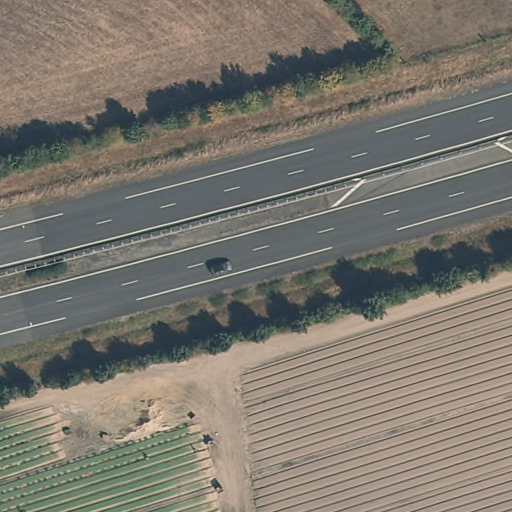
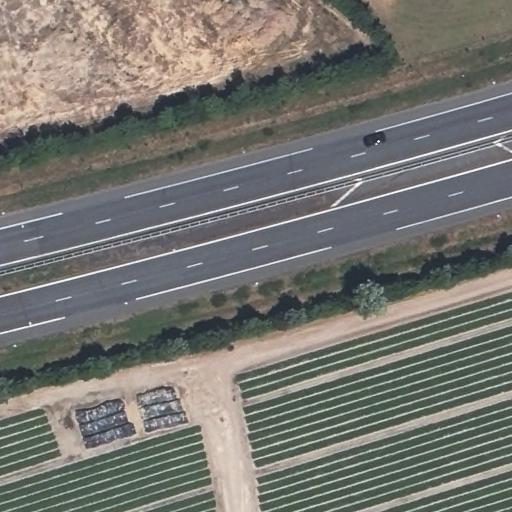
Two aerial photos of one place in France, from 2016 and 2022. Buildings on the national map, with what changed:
[]

